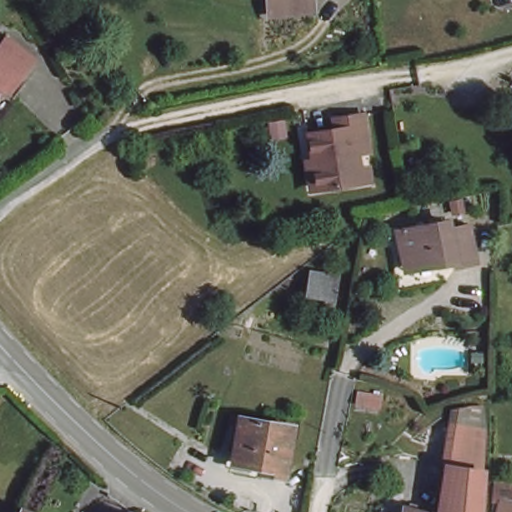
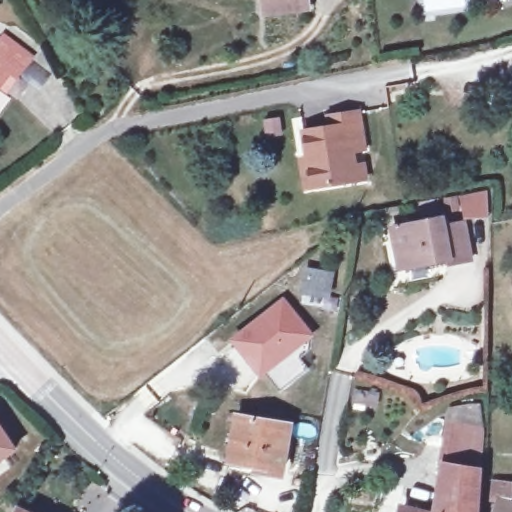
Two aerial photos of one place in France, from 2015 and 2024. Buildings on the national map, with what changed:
unchanged [(306,13),(266,18),(262,0),(305,0),(306,13)]
unchanged [(0,46),(3,42),(30,62),(15,82),(6,94),(0,89),(0,46)]
unchanged [(366,184),(353,185),(314,190),(306,132),(339,127),(336,118),(359,115),(366,153),(349,155),(351,168),(364,166),(366,184)]
unchanged [(446,230),(459,226),(462,237),(468,236),(473,262),(449,267),(447,260),(411,269),(406,247),(397,249),(393,231),(444,220),(446,230)]
new [(303,265),(336,271),(333,294),(340,295),(337,311),(298,303),(303,265)]
new [(284,294),(316,335),(261,379),(228,339),(284,294)]
new [(354,386),(379,390),(377,408),(351,407),(354,386)]
unchanged [(287,420),(285,474),(261,473),(261,463),(232,462),(233,417),(287,420)]
new [(0,423),(18,450),(0,463),(0,423)]
unchanged [(498,512),(498,506),(512,508),(512,512),(498,512)]

